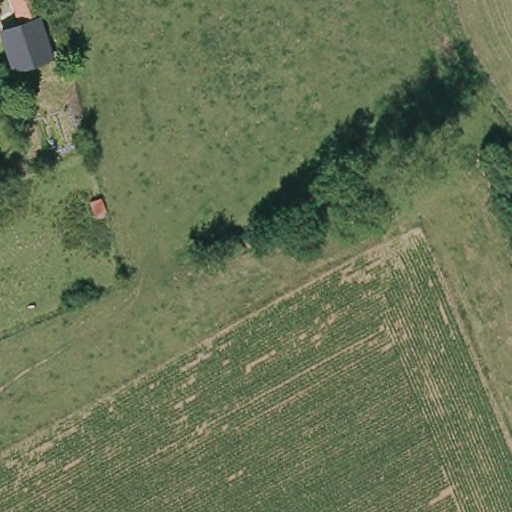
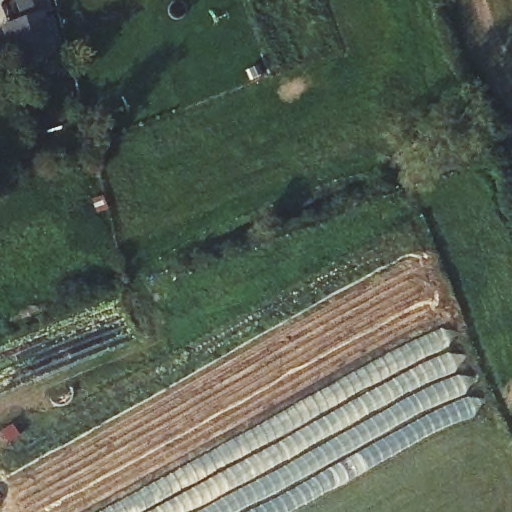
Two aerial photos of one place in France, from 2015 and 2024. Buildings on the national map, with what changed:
demolished [(25,17),(19,0),(41,0),(45,10),(25,17)]
unchanged [(12,72),(0,32),(0,26),(25,17),(40,12),(55,58),(12,72)]
new [(475,416),(292,512),(102,512),(440,330),(475,416)]

